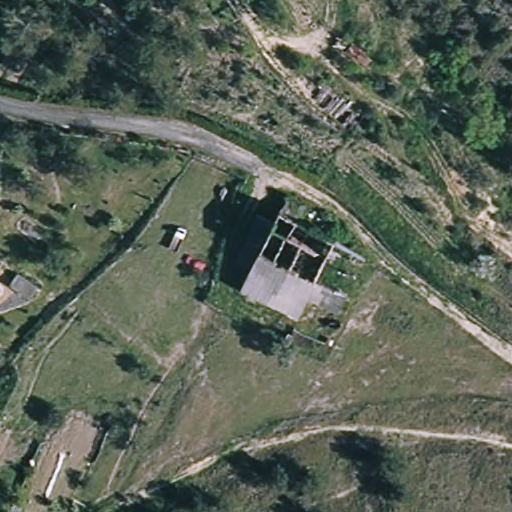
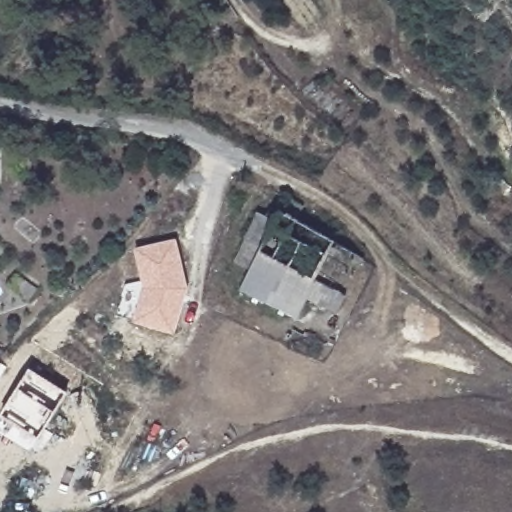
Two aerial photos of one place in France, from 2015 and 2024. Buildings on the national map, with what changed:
new [(174,333),(134,320),(144,289),(134,248),(176,238),(188,287),(174,333)]
unchanged [(268,306),(242,292),(263,250),(317,279),(348,294),(339,311),(309,297),(302,309),(296,321),(268,306)]

